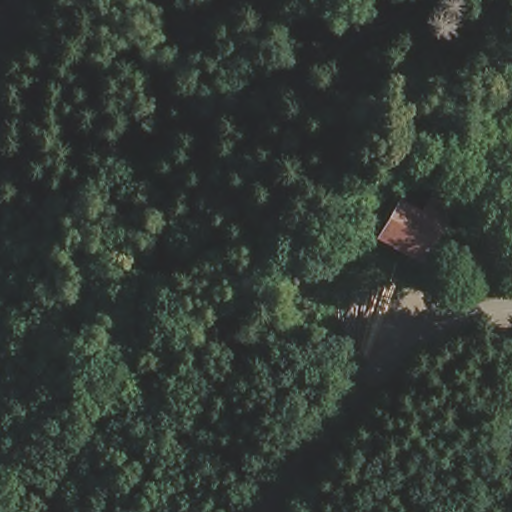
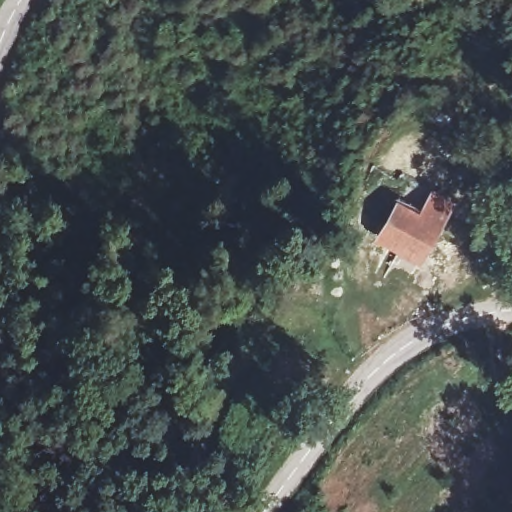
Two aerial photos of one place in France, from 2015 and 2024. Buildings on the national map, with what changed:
unchanged [(400,160),(435,174),(417,217),(440,227),(417,274),(393,262),(371,251),(393,208),(378,206),(400,160)]
unchanged [(440,227),(443,228),(477,241),(452,289),(417,274),(440,227)]

